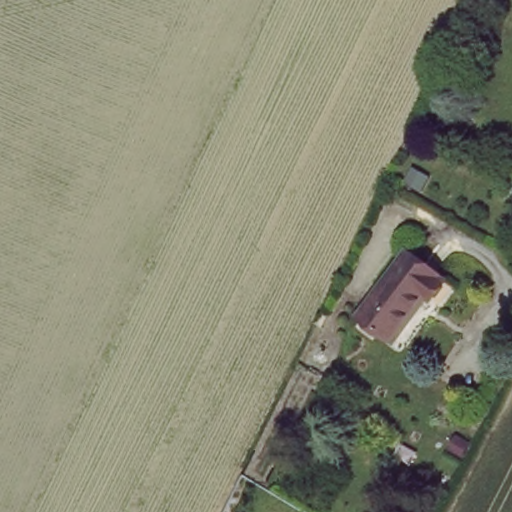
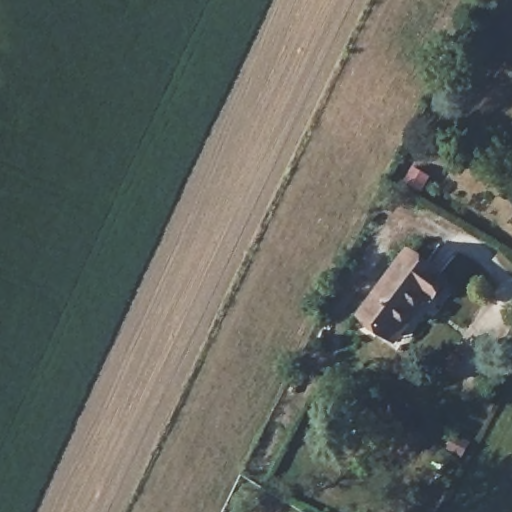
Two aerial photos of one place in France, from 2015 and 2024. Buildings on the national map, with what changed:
unchanged [(437,299),(432,294),(400,339),(362,312),(410,252),(450,280),(437,299)]

